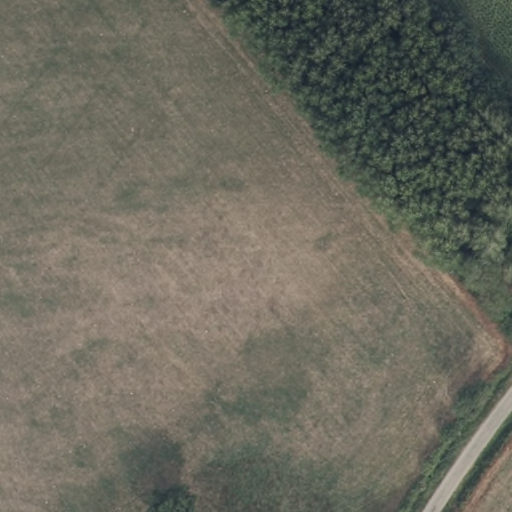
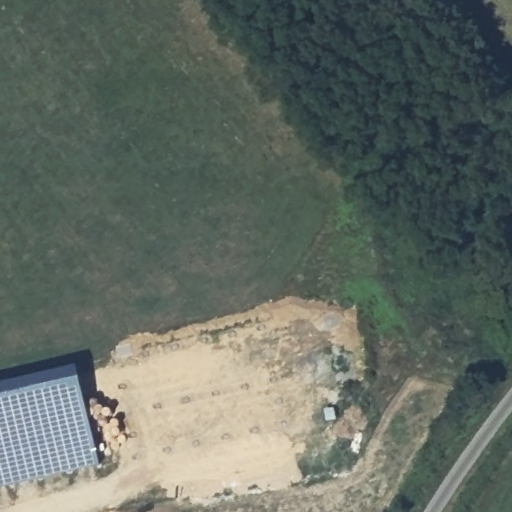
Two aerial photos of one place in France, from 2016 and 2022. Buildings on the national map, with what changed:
new [(77,366),(102,465),(0,488),(0,383),(77,366)]

